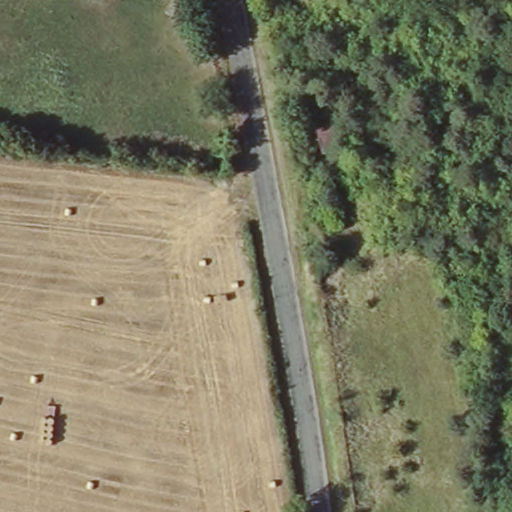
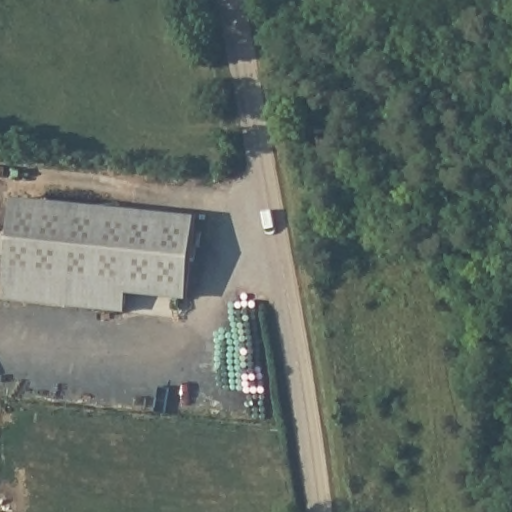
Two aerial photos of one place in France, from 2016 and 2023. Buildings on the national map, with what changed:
unchanged [(304,101),(328,96),(340,157),(321,161),(304,101)]
new [(17,197),(200,217),(188,297),(186,316),(126,308),(5,296),(17,197)]

